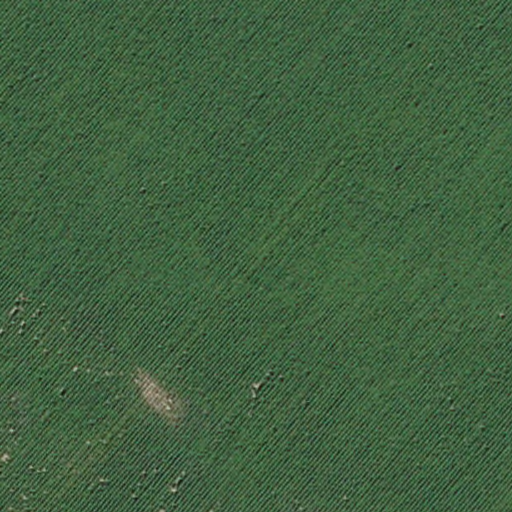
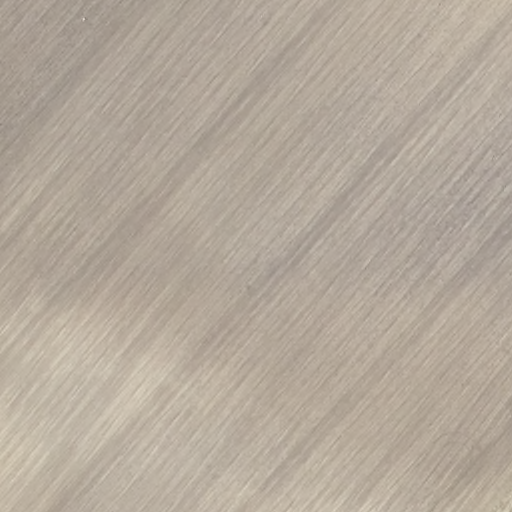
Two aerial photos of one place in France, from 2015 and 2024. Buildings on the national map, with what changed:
[]

